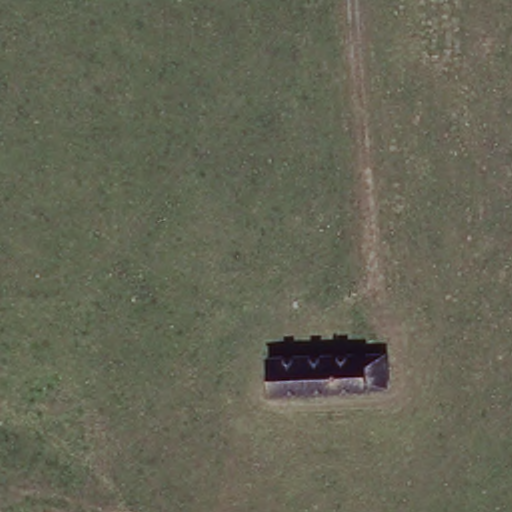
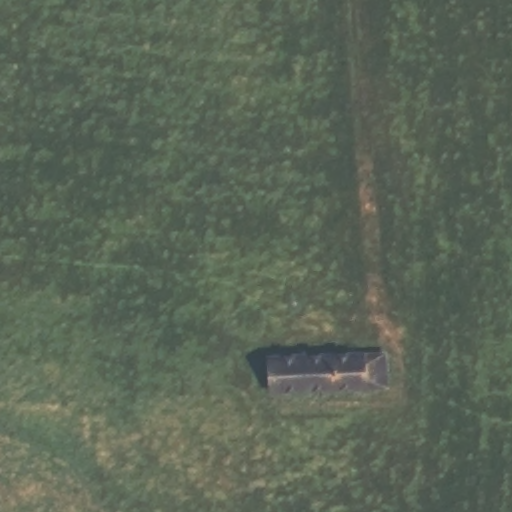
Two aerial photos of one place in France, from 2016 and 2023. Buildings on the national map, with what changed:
unchanged [(271,356),(365,352),(390,352),(390,384),(367,385),(272,388),(271,356)]

